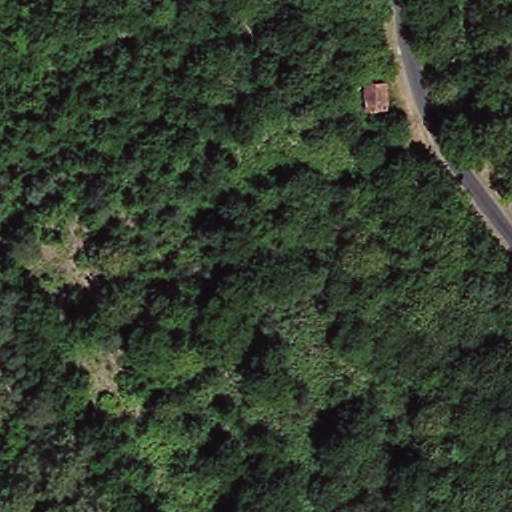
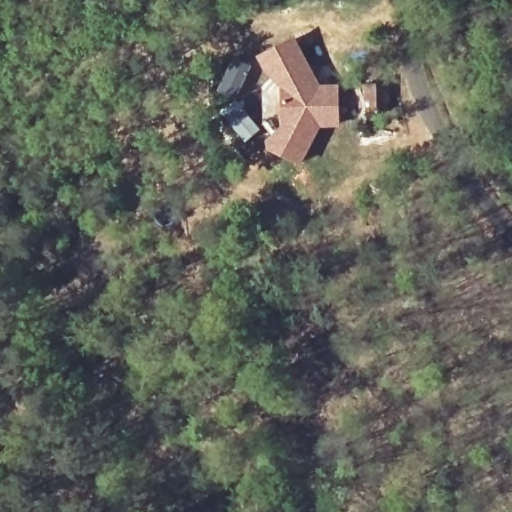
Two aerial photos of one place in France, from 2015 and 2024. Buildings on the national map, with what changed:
new [(305,155),(277,142),(275,138),(277,134),(287,115),(286,72),(274,64),(273,64),(265,51),(297,33),(315,65),(324,79),(340,79),(342,117),(323,117),(315,133),(305,155)]
new [(274,64),(286,72),(287,115),(277,134),(263,126),(262,82),(274,64)]
unchanged [(385,87),(386,119),(367,119),(367,87),(385,87)]

